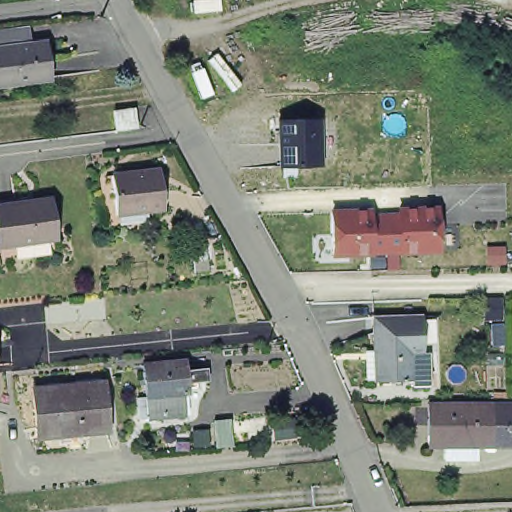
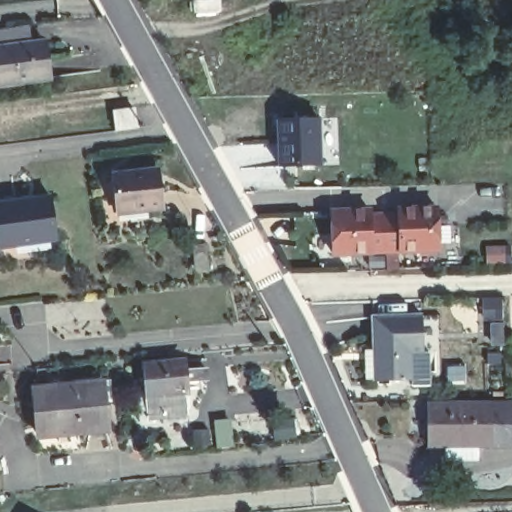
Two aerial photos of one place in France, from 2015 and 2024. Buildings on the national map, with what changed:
unchanged [(0,46),(5,45),(3,30),(37,25),(39,42),(45,41),(47,58),(50,78),(0,84),(0,46)]
unchanged [(119,128),(116,109),(136,106),(139,125),(119,128)]
unchanged [(317,118),(320,166),(278,168),(276,120),(317,118)]
unchanged [(157,165),(161,207),(116,211),(112,171),(157,165)]
unchanged [(55,239),(0,245),(0,203),(51,199),(55,239)]
unchanged [(374,210),(373,215),(400,215),(400,209),(442,207),(444,251),(333,257),(335,213),(374,210)]
unchanged [(212,263),(197,265),(195,237),(209,236),(212,263)]
unchanged [(429,391),(410,391),(410,385),(371,387),(368,323),(418,321),(420,358),(428,358),(429,391)]
unchanged [(146,408),(144,400),(153,399),(150,365),(189,362),(191,370),(211,369),(212,381),(192,383),(195,415),(156,419),(147,420),(146,408)]
unchanged [(103,434),(72,437),(72,435),(54,435),(53,438),(33,440),(28,394),(67,390),(67,387),(97,385),(103,434)]
unchanged [(445,456),(445,441),(427,441),(426,400),(488,400),(489,440),(476,441),(476,456),(445,456)]
unchanged [(512,400),(512,440),(489,440),(488,400),(512,400)]

